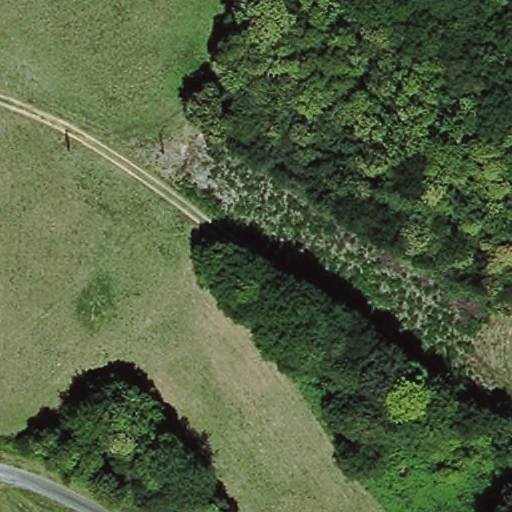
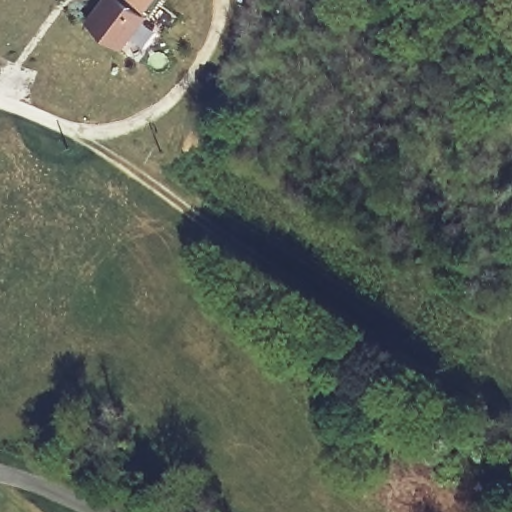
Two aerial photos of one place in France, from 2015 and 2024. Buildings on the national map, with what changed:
new [(148,16),(121,47),(86,21),(102,0),(151,0),(142,12),(148,16)]

